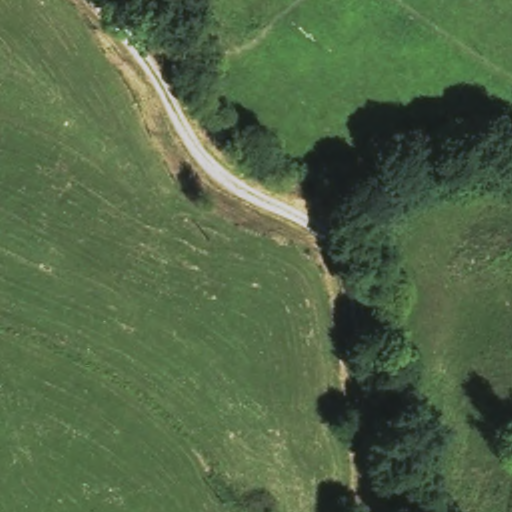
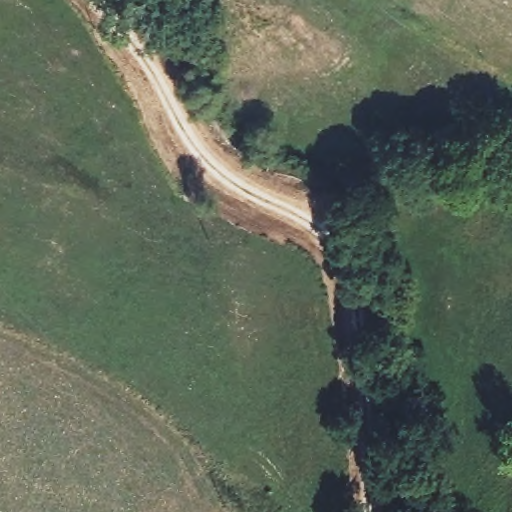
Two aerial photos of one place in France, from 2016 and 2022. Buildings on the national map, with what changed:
[]

